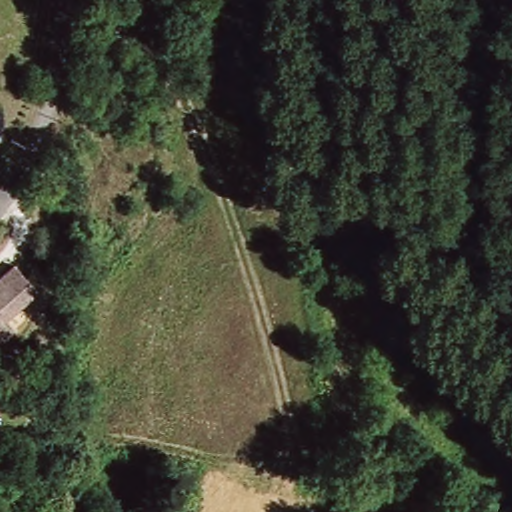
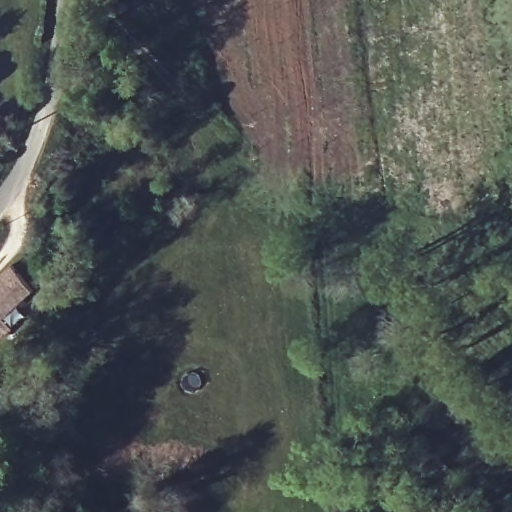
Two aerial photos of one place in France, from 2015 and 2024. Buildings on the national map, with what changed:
unchanged [(7,338),(0,330),(0,283),(20,266),(42,291),(10,319),(19,328),(7,338)]

